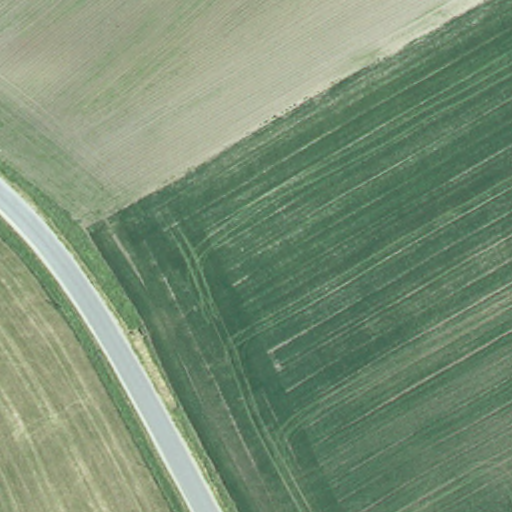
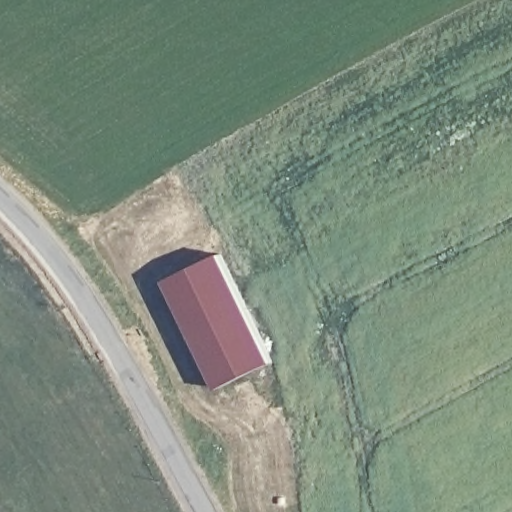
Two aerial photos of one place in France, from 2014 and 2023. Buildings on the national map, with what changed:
new [(275,362),(217,390),(165,279),(223,251),(275,362)]

